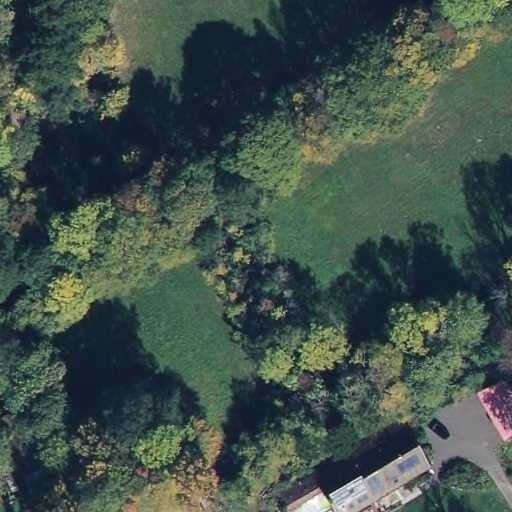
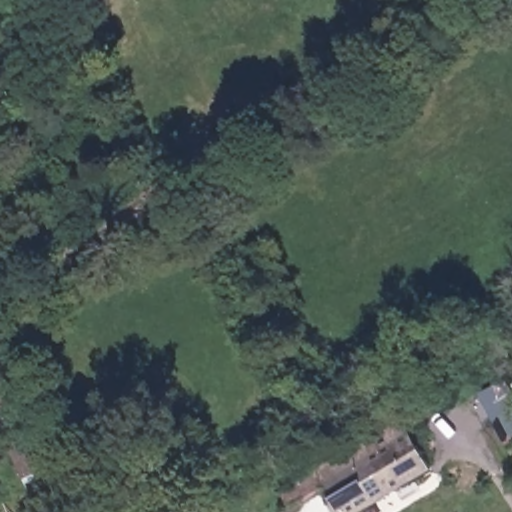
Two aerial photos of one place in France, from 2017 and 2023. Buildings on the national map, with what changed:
unchanged [(64,463),(20,480),(0,430),(0,414),(39,401),(64,463)]
unchanged [(368,438),(375,447),(404,432),(427,471),(351,512),(343,512),(312,465),(368,438)]

